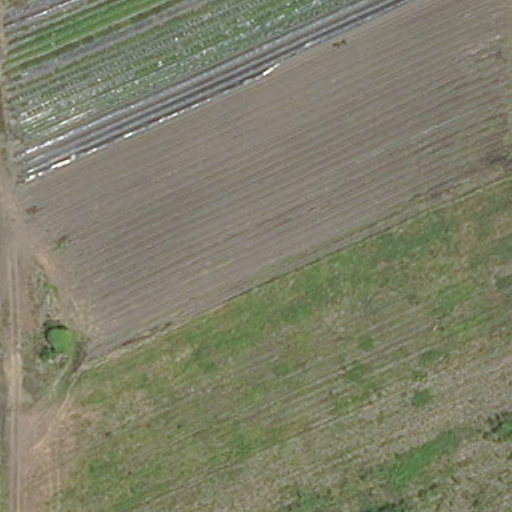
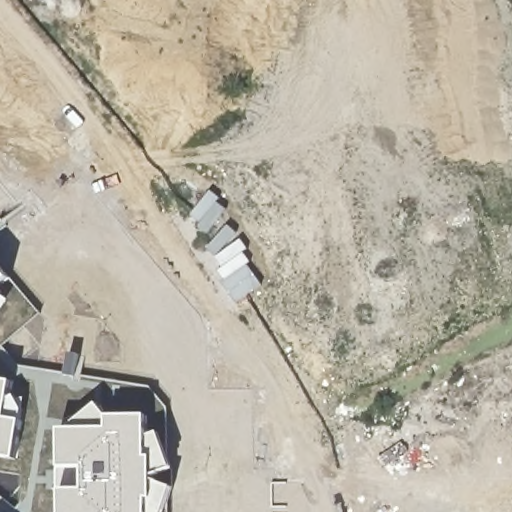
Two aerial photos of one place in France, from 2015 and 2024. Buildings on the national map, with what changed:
new [(10,280),(0,288),(0,269),(10,280)]
new [(4,290),(0,308),(0,290),(4,290)]
new [(0,456),(0,380),(14,383),(12,399),(17,397),(26,412),(25,420),(17,460),(0,456)]
new [(70,430),(100,405),(110,417),(150,417),(150,439),(161,433),(174,469),(154,479),(174,488),(166,512),(63,512),(62,430),(70,430)]

